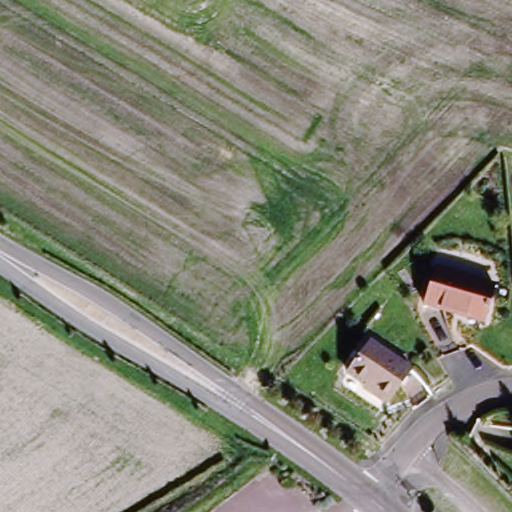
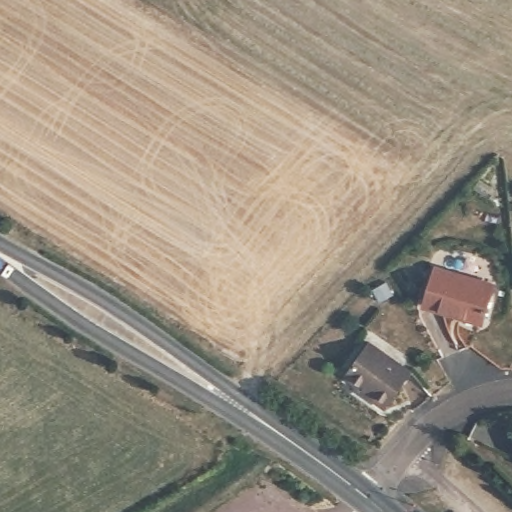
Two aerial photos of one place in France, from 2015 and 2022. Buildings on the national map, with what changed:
unchanged [(435,276),(495,289),(488,321),(428,307),(435,276)]
unchanged [(350,381),(375,350),(412,382),(384,417),(371,406),(374,402),(350,381)]

